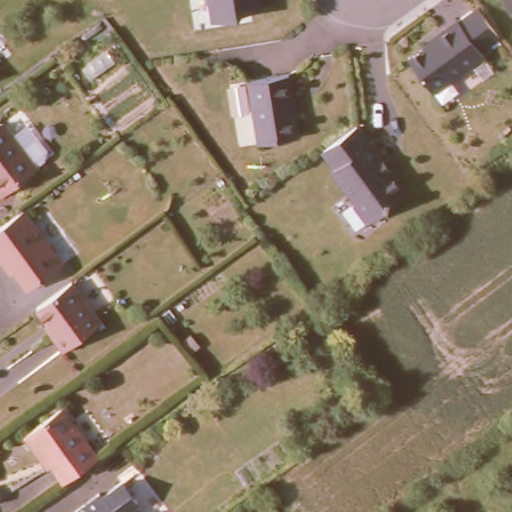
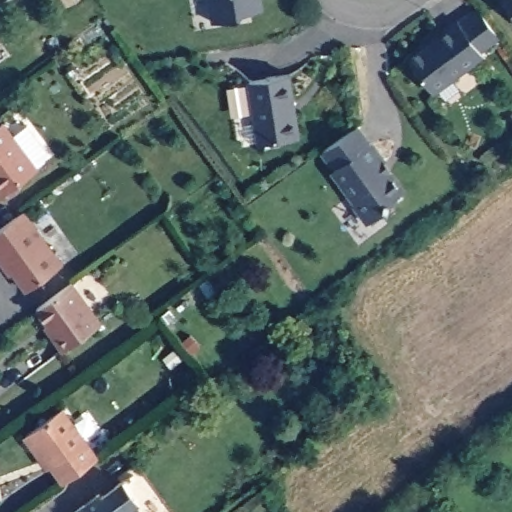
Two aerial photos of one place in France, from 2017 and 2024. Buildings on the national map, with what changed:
unchanged [(212,20),(210,0),(264,0),(265,14),(212,20)]
unchanged [(512,0),(512,11),(505,0),(512,0)]
unchanged [(487,60),(436,96),(411,61),(460,24),(487,60)]
unchanged [(302,138),(238,149),(235,114),(250,112),(245,80),(292,72),(302,138)]
unchanged [(3,192),(0,187),(0,126),(5,123),(37,166),(3,192)]
unchanged [(410,191),(366,226),(318,158),(365,125),(410,191)]
unchanged [(23,294),(5,269),(2,271),(0,268),(0,230),(23,214),(61,267),(23,294)]
unchanged [(101,324),(63,351),(52,336),(55,334),(37,309),(71,284),(101,324)]
unchanged [(36,446),(32,449),(22,434),(59,408),(93,457),(60,481),(36,446)]
unchanged [(137,503),(133,506),(138,512),(82,512),(83,505),(99,494),(101,497),(123,482),(137,503)]

